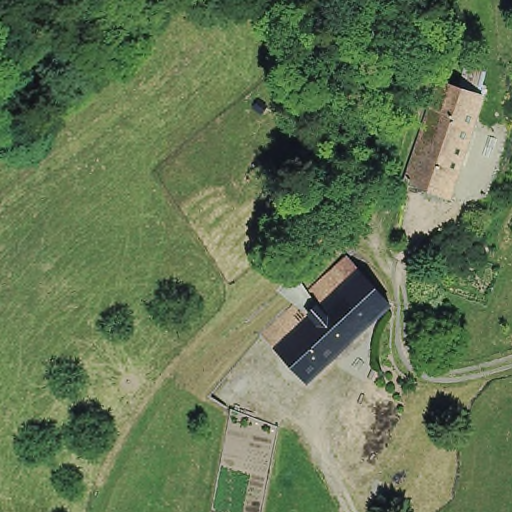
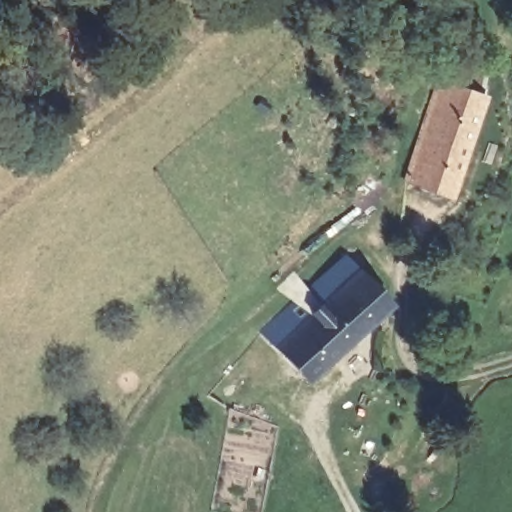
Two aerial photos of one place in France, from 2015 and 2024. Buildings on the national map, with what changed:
unchanged [(452,183),(410,169),(445,68),(465,75),(473,51),(491,57),(483,81),(486,81),(452,183)]
unchanged [(504,146),(499,161),(487,156),(477,153),(482,139),(492,143),(504,146)]
unchanged [(301,379),(257,328),(335,265),(350,252),(392,301),(301,379)]

